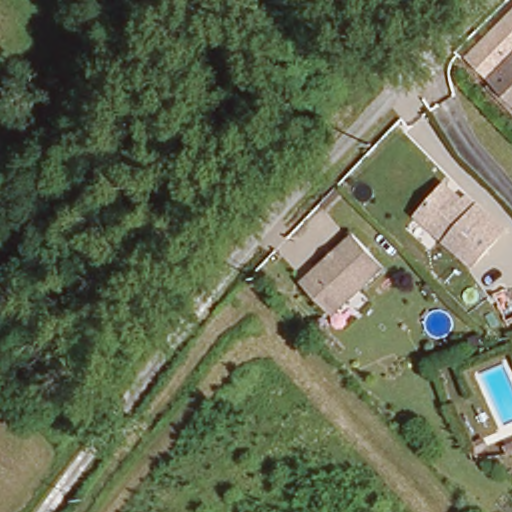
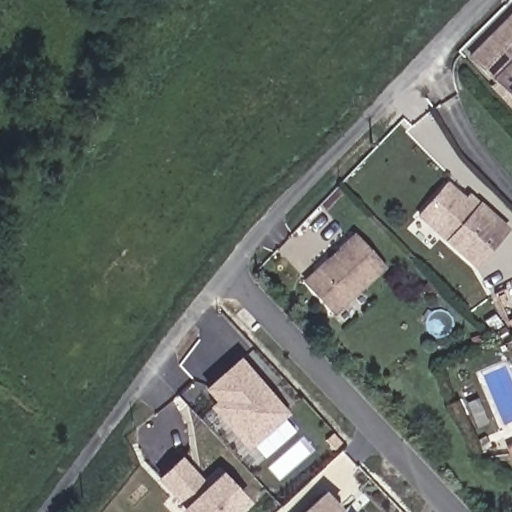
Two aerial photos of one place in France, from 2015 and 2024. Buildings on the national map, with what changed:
unchanged [(512,17),(512,97),(472,57),(512,17)]
unchanged [(467,203),(467,206),(474,215),(481,207),(507,231),(473,266),(418,215),(448,184),(467,203)]
unchanged [(300,280),(348,231),(381,262),(329,311),(300,280)]
new [(209,393),(244,363),(290,416),(250,451),(233,432),(224,422),(230,416),(209,393)]
new [(222,472),(226,477),(249,502),(239,512),(194,512),(165,482),(186,462),(208,486),(222,472)]
new [(341,509),(337,512),(302,512),(324,491),(341,509)]

